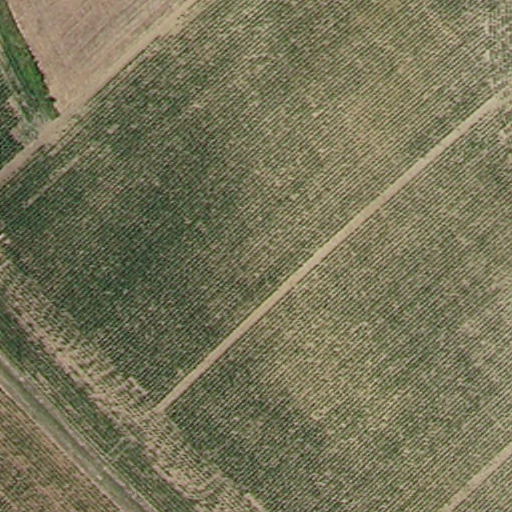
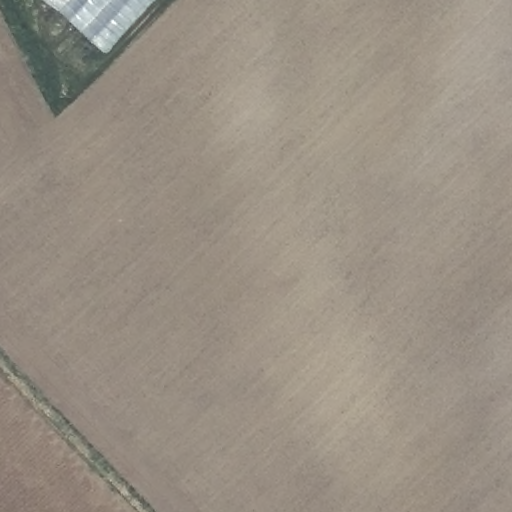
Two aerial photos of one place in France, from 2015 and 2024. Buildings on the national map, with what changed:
new [(107,53),(48,0),(156,0),(107,53)]

